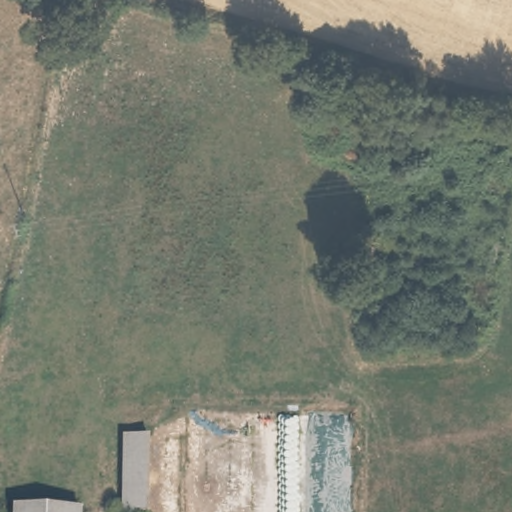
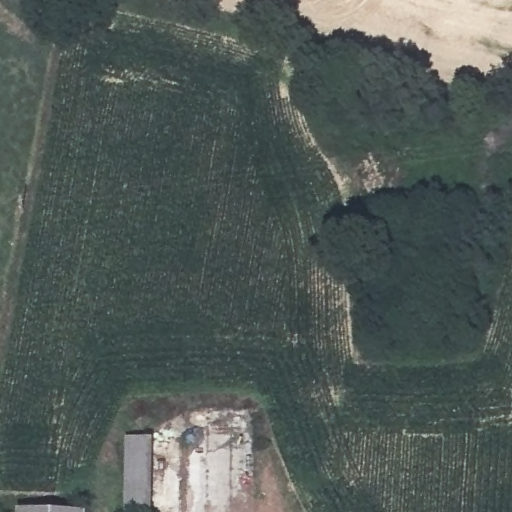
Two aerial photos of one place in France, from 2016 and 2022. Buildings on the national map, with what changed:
unchanged [(124,512),(124,440),(151,440),(151,512),(124,512)]

